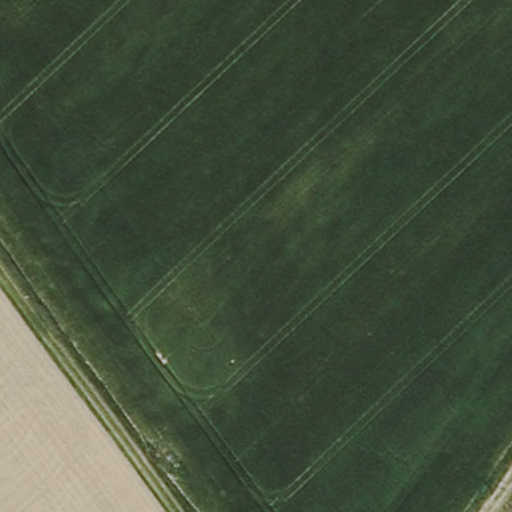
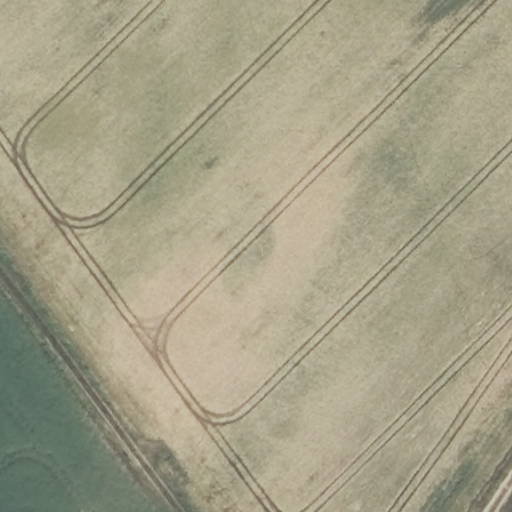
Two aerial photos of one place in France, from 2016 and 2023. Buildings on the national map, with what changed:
[]

